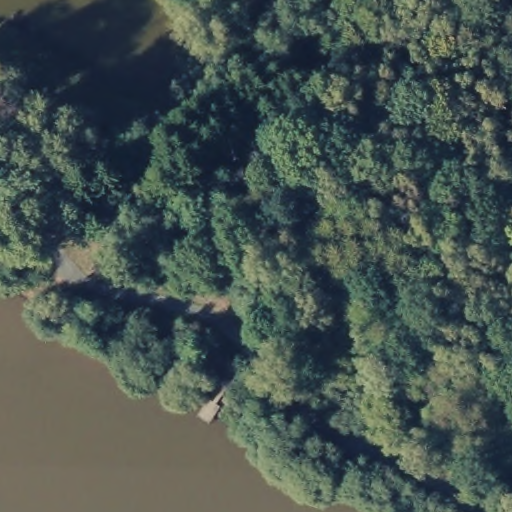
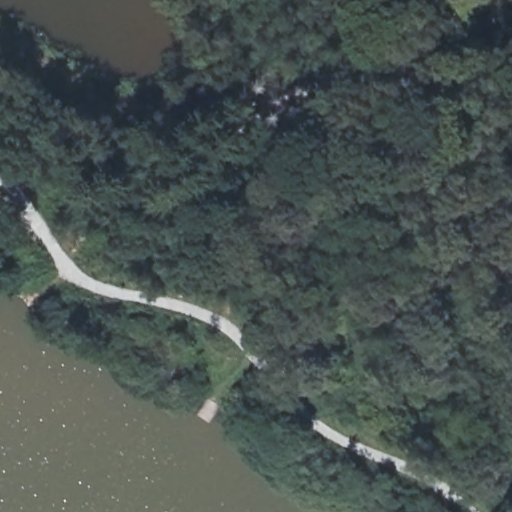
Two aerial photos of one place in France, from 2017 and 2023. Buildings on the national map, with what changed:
unchanged [(230,391),(210,380),(212,376),(193,364),(203,347),(222,357),(223,355),(243,369),(230,391)]

